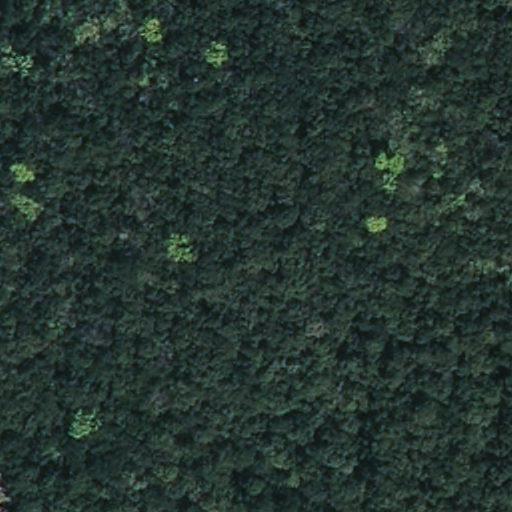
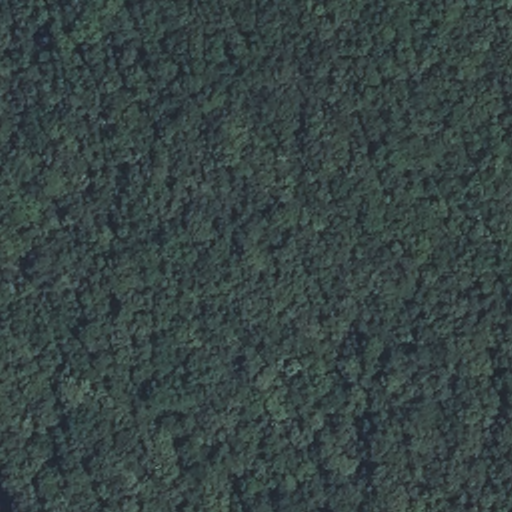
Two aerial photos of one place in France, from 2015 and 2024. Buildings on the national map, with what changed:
[]

